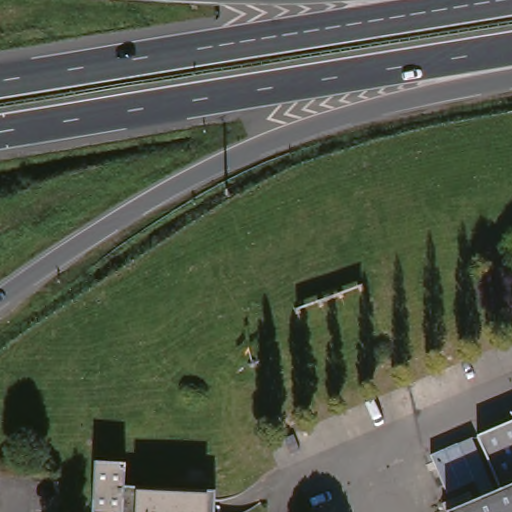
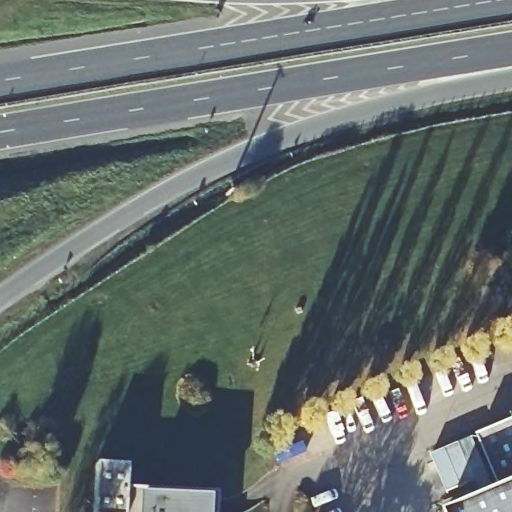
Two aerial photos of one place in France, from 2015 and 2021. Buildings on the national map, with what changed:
unchanged [(451,512),(496,493),(493,486),(488,473),(473,437),(512,421),(512,512),(451,512)]
unchanged [(473,437),(488,473),(448,488),(440,473),(446,471),(439,451),(473,437)]
unchanged [(122,466),(121,488),(209,491),(208,512),(89,512),(90,465),(122,466)]

